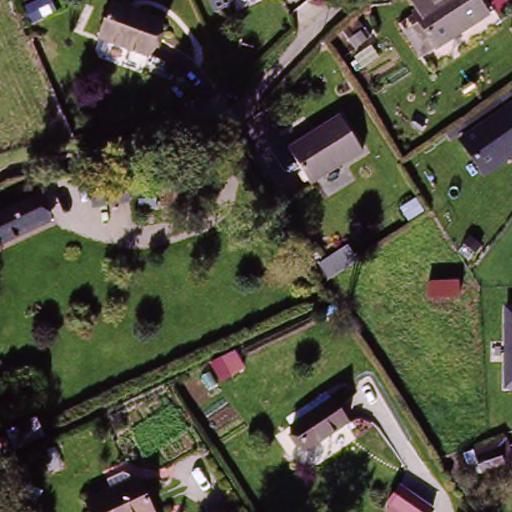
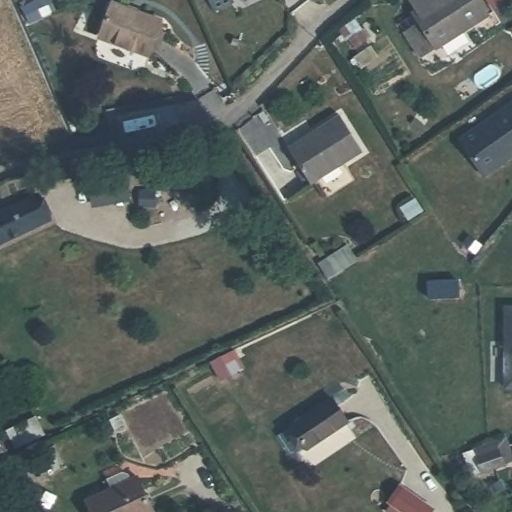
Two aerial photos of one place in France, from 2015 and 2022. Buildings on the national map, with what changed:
unchanged [(147,51),(98,30),(111,0),(116,0),(161,21),(147,51)]
unchanged [(213,0),(228,0),(216,6),(213,0)]
unchanged [(479,0),(488,15),(434,49),(412,14),(432,0),(479,0)]
unchanged [(455,141),(512,102),(512,157),(482,177),(455,141)]
unchanged [(336,114),(360,151),(313,186),(288,147),(336,114)]
unchanged [(51,217),(0,243),(0,210),(37,191),(51,217)]
unchanged [(457,285),(457,302),(428,301),(427,284),(457,285)]
unchanged [(512,306),(512,389),(503,389),(503,306),(512,306)]
unchanged [(328,396),(343,420),(302,446),(285,423),(328,396)]
unchanged [(133,478),(153,512),(93,512),(88,505),(133,478)]

